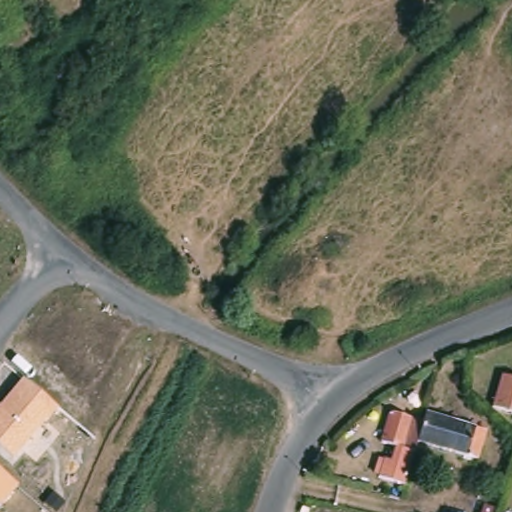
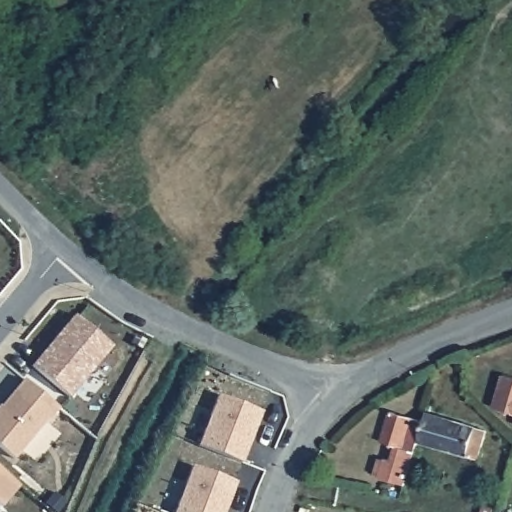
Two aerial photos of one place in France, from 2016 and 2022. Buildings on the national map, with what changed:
new [(74,315),(111,346),(69,397),(31,365),(74,315)]
unchanged [(512,376),(512,410),(497,406),(505,374),(512,376)]
unchanged [(0,447),(0,406),(3,405),(21,379),(57,409),(12,457),(0,447)]
new [(217,394),(260,412),(240,462),(197,445),(217,394)]
unchanged [(408,489),(382,482),(388,464),(395,466),(399,451),(385,446),(395,417),(428,426),(421,447),(408,489)]
unchanged [(489,436),(481,463),(421,447),(428,426),(430,418),(489,436)]
new [(235,482),(224,512),(174,512),(192,466),(235,482)]
unchanged [(0,505),(0,471),(16,485),(0,505)]

